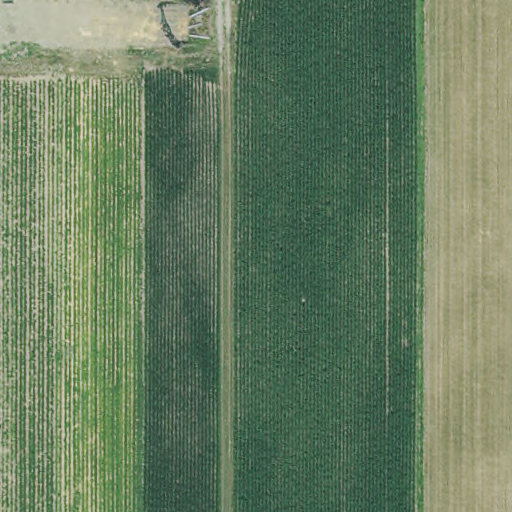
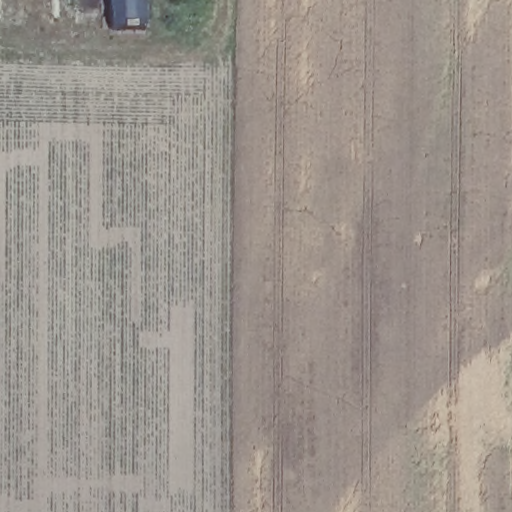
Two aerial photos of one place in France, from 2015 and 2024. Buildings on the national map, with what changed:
new [(148,25),(105,28),(104,0),(147,0),(148,25)]

